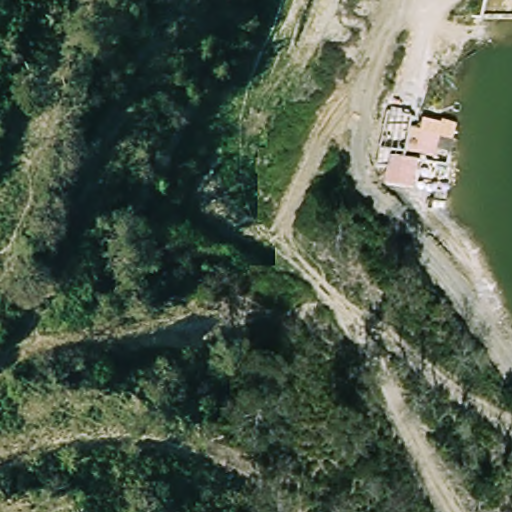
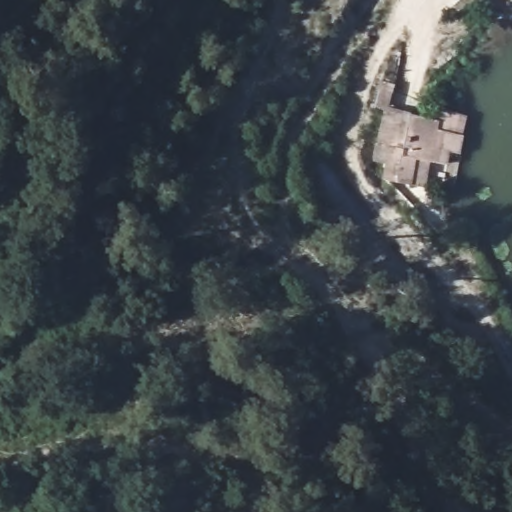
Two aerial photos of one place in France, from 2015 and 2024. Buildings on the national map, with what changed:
unchanged [(449,149),(436,146),(434,154),(404,148),(403,154),(417,156),(413,183),(383,179),(386,160),(375,159),(384,106),(411,111),(409,124),(420,126),(422,116),(441,121),(441,118),(455,123),(449,149)]

